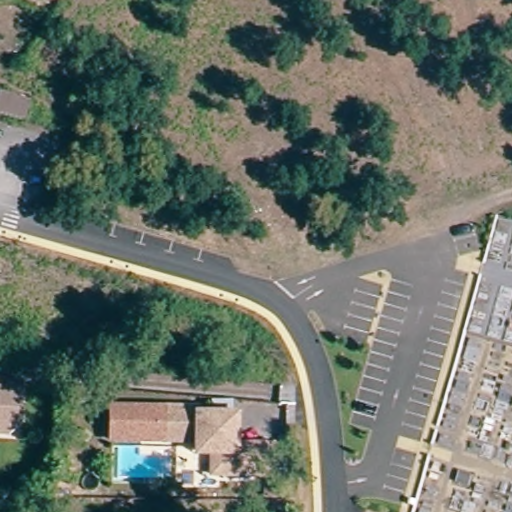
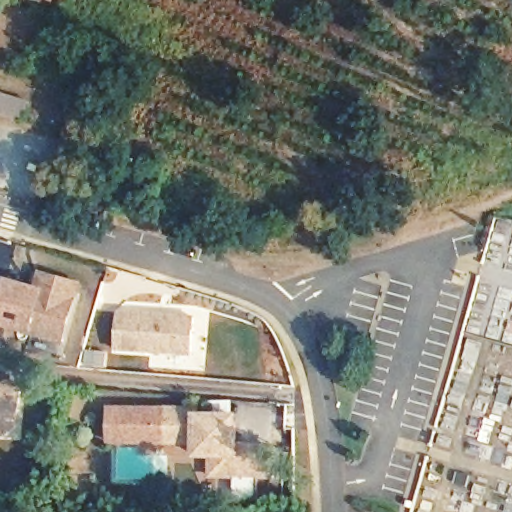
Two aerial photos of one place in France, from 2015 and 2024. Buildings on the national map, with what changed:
demolished [(22,49),(17,60),(1,56),(5,44),(22,49)]
unchanged [(0,85),(26,91),(19,113),(0,107),(0,85)]
unchanged [(64,114),(79,86),(102,93),(87,125),(64,114)]
demolished [(0,287),(0,262),(28,267),(23,291),(0,287)]
new [(41,268),(85,281),(68,345),(0,327),(0,304),(8,277),(37,285),(41,268)]
new [(198,316),(194,356),(115,349),(119,310),(198,316)]
unchanged [(14,426),(0,439),(0,390),(15,391),(14,426)]
unchanged [(213,456),(204,456),(194,456),(194,446),(110,443),(112,411),(164,413),(164,411),(199,413),(199,419),(229,420),(237,427),(236,447),(272,448),(270,478),(255,477),(219,476),(212,475),(213,456)]

